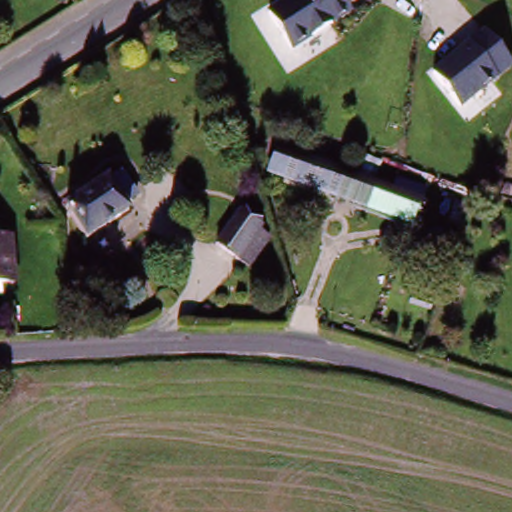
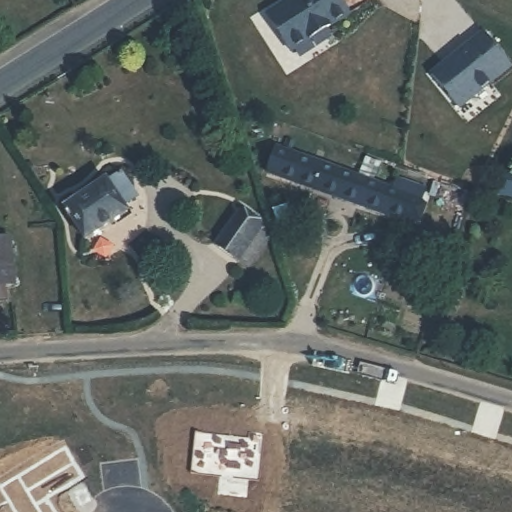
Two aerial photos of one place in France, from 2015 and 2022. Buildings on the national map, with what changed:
unchanged [(292,51),(268,15),(291,0),(334,0),(345,16),(292,51)]
unchanged [(512,67),(512,71),(459,113),(431,76),(483,30),(512,67)]
unchanged [(421,199),(411,227),(266,172),(275,147),(421,199)]
unchanged [(132,199),(119,209),(124,215),(82,244),(59,209),(101,183),(104,184),(110,180),(116,188),(121,185),(132,199)]
unchanged [(211,245),(234,215),(256,231),(270,241),(263,252),(248,273),(211,245)]
unchanged [(7,237),(11,281),(0,282),(0,237),(7,237)]

